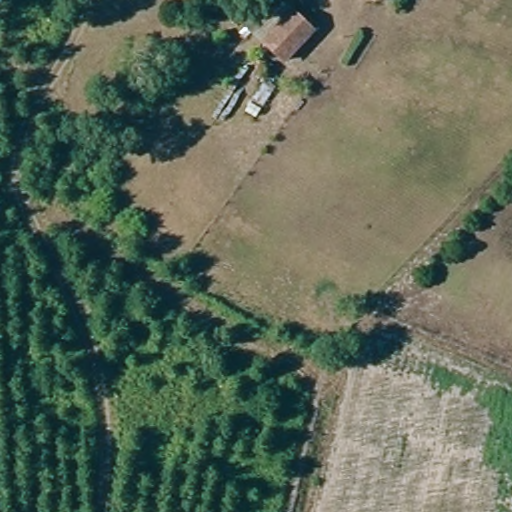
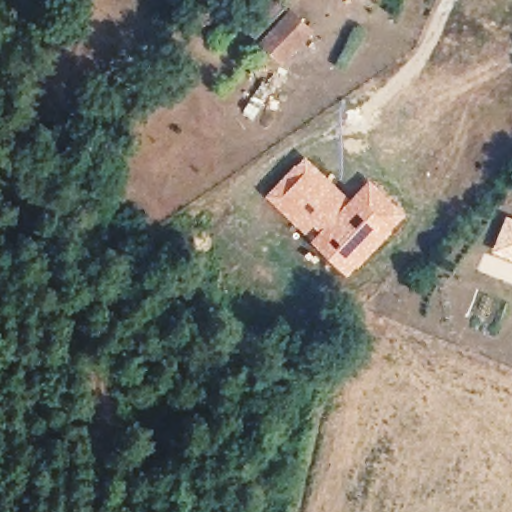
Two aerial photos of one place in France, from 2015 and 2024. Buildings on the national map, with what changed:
unchanged [(262,0),(280,0),(316,34),(283,69),(238,26),(262,0)]
new [(305,155),(350,197),(369,178),(407,214),(347,276),(265,195),(305,155)]
new [(512,218),(512,263),(490,254),(506,215),(512,218)]
new [(512,263),(512,284),(478,270),(490,254),(512,263)]

